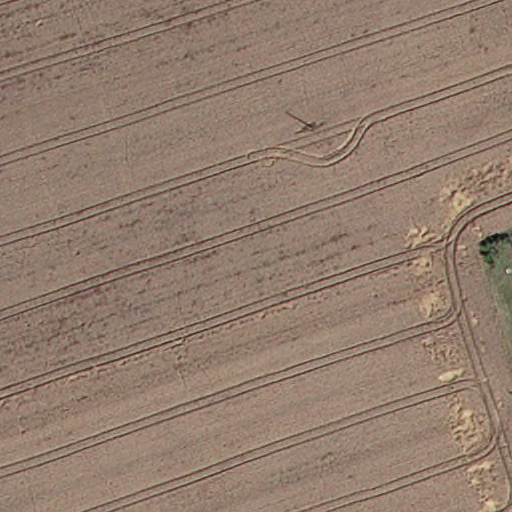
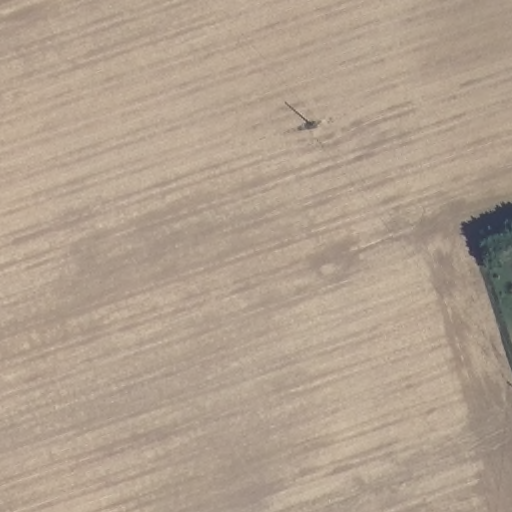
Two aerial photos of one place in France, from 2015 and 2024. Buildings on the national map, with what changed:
[]

